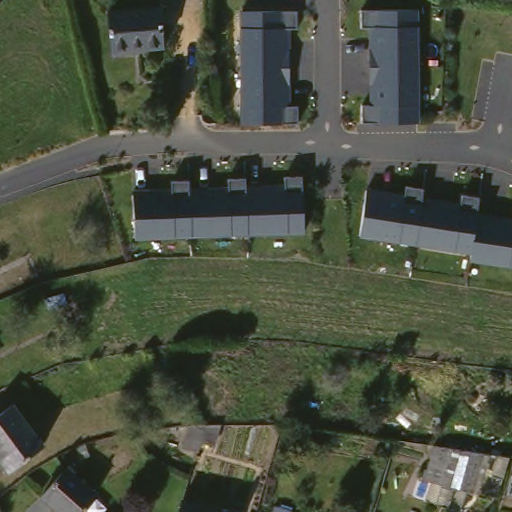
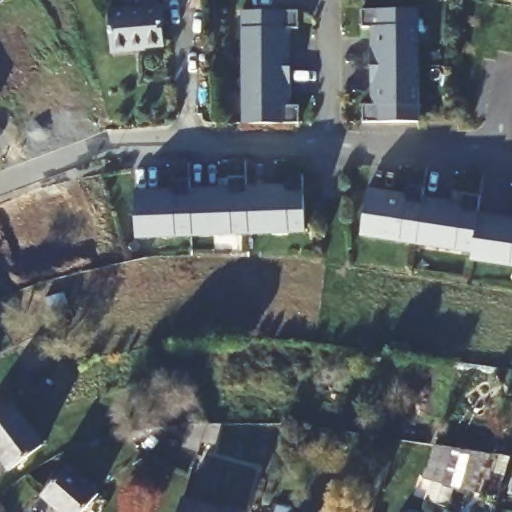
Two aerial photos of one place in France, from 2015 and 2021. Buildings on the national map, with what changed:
unchanged [(109,12),(162,8),(164,45),(132,48),(132,51),(112,53),(109,12)]
unchanged [(243,10),(304,11),(302,28),(290,28),(289,104),(301,106),(300,123),(239,123),(243,10)]
unchanged [(359,106),(369,104),(366,28),(360,29),(361,11),(422,14),(421,121),(360,123),(359,106)]
unchanged [(134,194),(167,193),(167,180),(167,176),(187,175),(189,191),(228,190),(228,179),(246,179),(251,189),(289,189),(288,179),(303,179),(306,230),(138,241),(134,194)]
unchanged [(400,197),(406,185),(427,188),(427,195),(459,204),(463,196),(484,200),(480,216),(512,224),(512,263),(473,256),(473,250),(360,238),(369,191),(400,197)]
unchanged [(17,404),(47,444),(13,470),(0,451),(0,416),(17,404)]
unchanged [(166,441),(170,427),(189,425),(203,424),(219,424),(213,444),(198,440),(196,449),(166,441)]
unchanged [(472,453),(491,455),(480,494),(461,489),(442,483),(444,473),(447,473),(453,450),(472,453)]
unchanged [(76,467),(106,494),(89,512),(70,512),(50,495),(76,467)]
unchanged [(192,503),(220,512),(189,512),(192,503)]
unchanged [(280,507),(298,512),(279,512),(280,507)]

